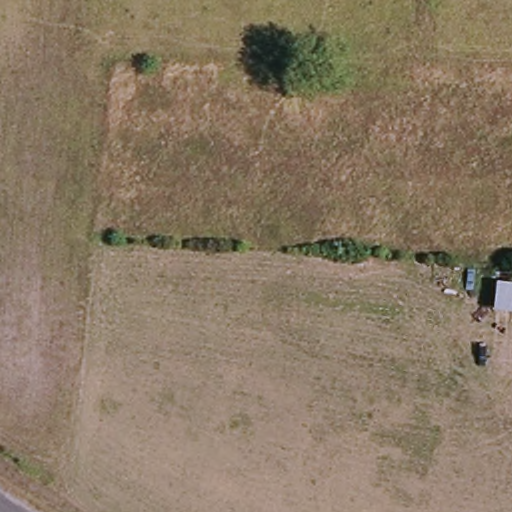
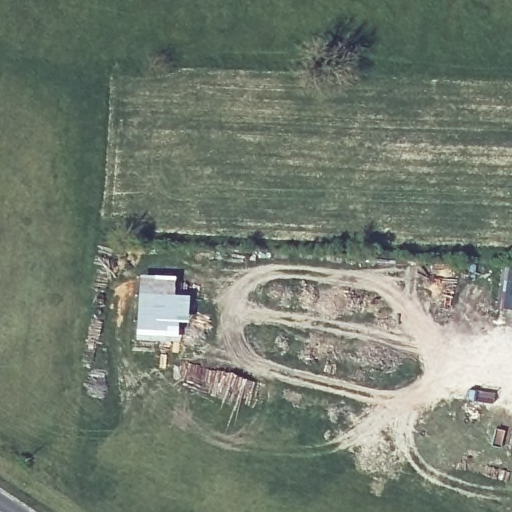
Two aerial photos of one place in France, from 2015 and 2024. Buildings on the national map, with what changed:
new [(135,275),(172,276),(171,295),(185,296),(183,323),(175,323),(174,342),(131,341),(135,275)]
unchanged [(512,283),(512,313),(498,311),(500,282),(512,283)]

